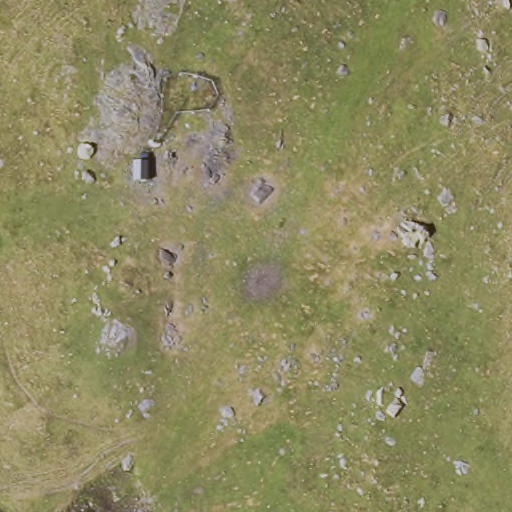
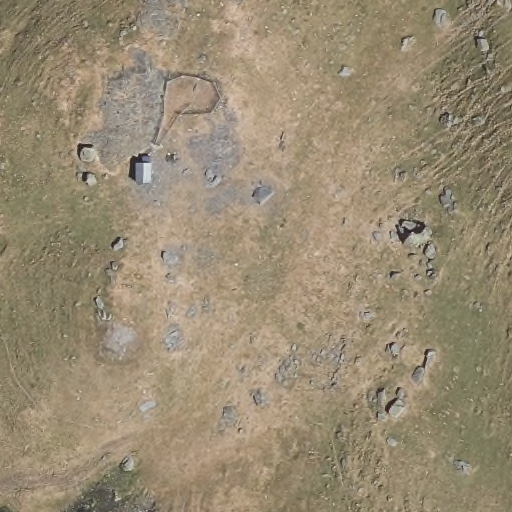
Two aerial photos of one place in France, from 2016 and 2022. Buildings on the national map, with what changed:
unchanged [(149,187),(135,187),(126,187),(127,164),(149,165),(149,187)]

